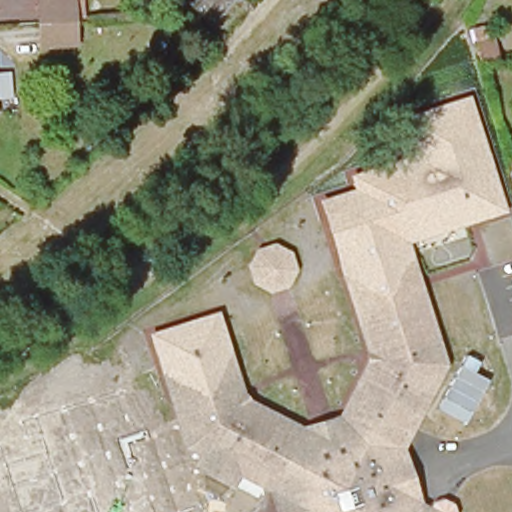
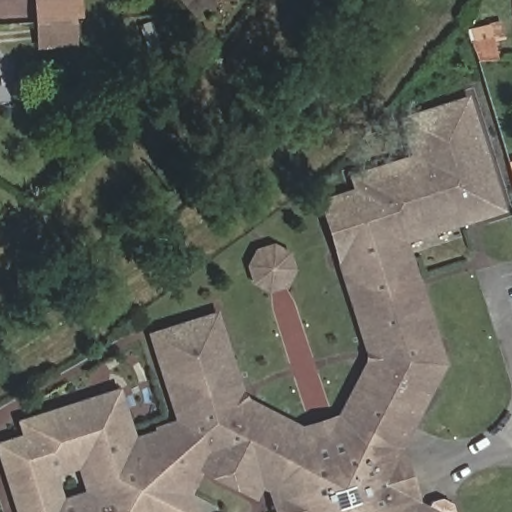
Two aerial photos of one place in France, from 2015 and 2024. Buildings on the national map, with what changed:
unchanged [(39,45),(37,0),(79,0),(78,45),(39,45)]
unchanged [(474,53),(495,52),(497,71),(479,73),(474,53)]
unchanged [(409,245),(408,250),(342,272),(319,198),(354,188),(349,173),(418,153),(405,113),(471,94),(507,213),(409,245)]
unchanged [(250,285),(246,267),(257,247),(278,242),(290,249),(297,267),(292,287),(272,293),(250,285)]
unchanged [(228,347),(242,388),(248,397),(299,423),(334,413),(363,360),(364,352),(339,273),(408,250),(446,366),(403,447),(409,473),(420,502),(429,504),(431,501),(443,498),(451,502),(455,512),(271,512),(264,491),(236,477),(230,489),(202,473),(188,466),(194,454),(183,448),(174,421),(156,370),(228,347)]
unchanged [(144,335),(218,312),(228,347),(156,370),(144,335)]
new [(16,420),(120,387),(136,437),(155,430),(154,426),(174,421),(183,448),(194,454),(188,466),(202,473),(193,493),(198,512),(16,512),(0,462),(0,441),(21,435),(16,420)]

